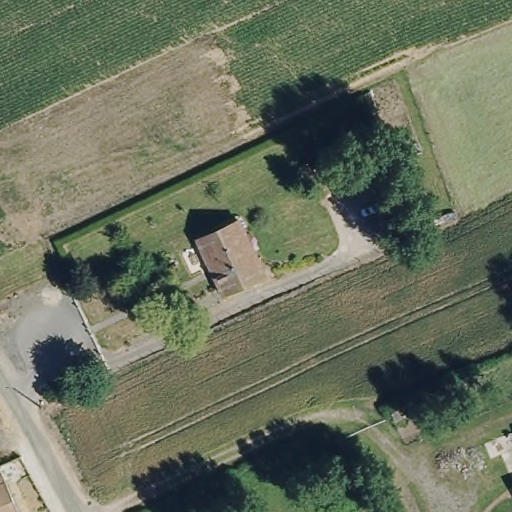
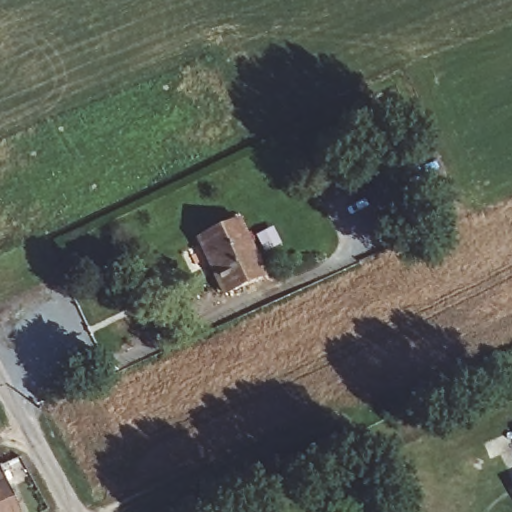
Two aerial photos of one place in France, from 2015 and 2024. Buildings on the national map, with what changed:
unchanged [(381,135),(392,168),(355,181),(345,148),(381,135)]
unchanged [(262,273),(221,292),(197,237),(237,219),(262,273)]
unchanged [(19,512),(0,512),(0,467),(4,476),(19,512)]
unchanged [(509,482),(512,480),(512,488),(509,482)]

